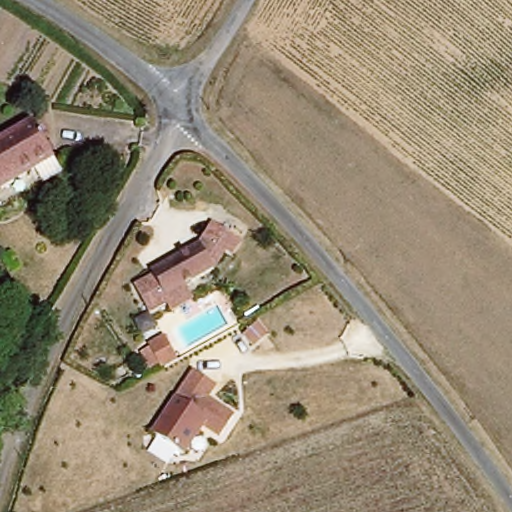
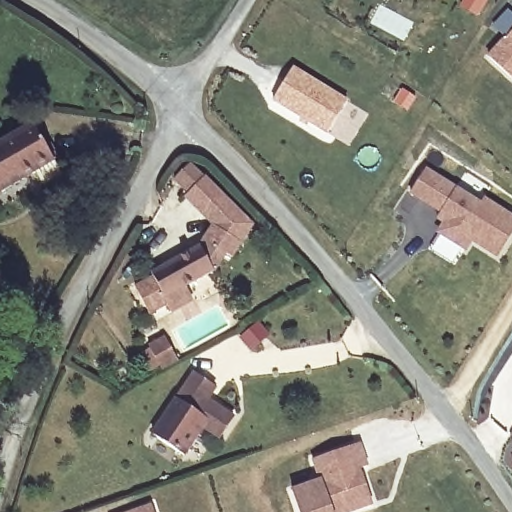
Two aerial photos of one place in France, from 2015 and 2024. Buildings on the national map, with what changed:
new [(492,53),(512,32),(512,71),(492,53)]
new [(295,66),(350,100),(330,132),(276,98),(295,66)]
unchanged [(0,195),(0,147),(34,128),(55,164),(0,195)]
new [(413,188),(428,166),(483,202),(486,197),(512,214),(512,236),(500,254),(473,237),(467,246),(441,229),(447,220),(440,214),(444,208),(413,188)]
unchanged [(173,310),(169,302),(150,313),(135,287),(154,276),(152,272),(201,245),(214,224),(241,242),(231,257),(225,253),(214,271),(185,287),(192,300),(173,310)]
unchanged [(160,370),(146,344),(161,336),(175,362),(160,370)]
unchanged [(218,387),(210,401),(235,418),(220,442),(202,431),(186,457),(150,435),(191,372),(218,387)]
new [(313,458),(358,443),(366,466),(360,468),(372,504),(347,512),(300,512),(292,490),(321,480),(313,458)]
new [(155,512),(124,512),(152,502),(155,512)]

